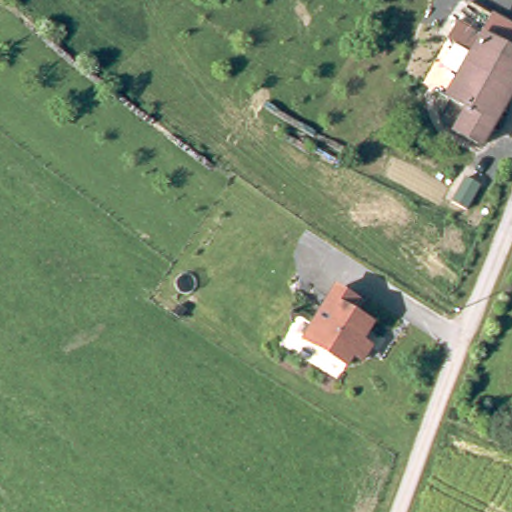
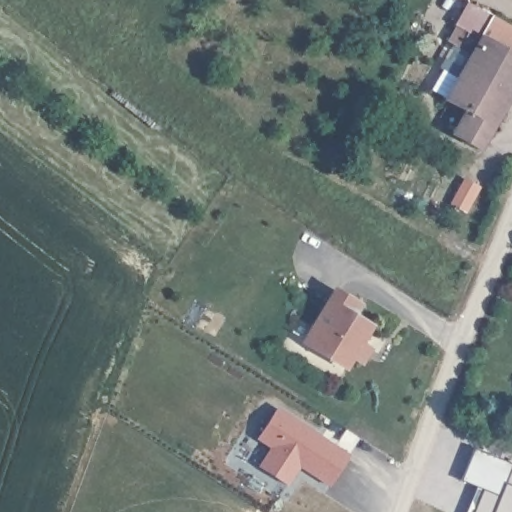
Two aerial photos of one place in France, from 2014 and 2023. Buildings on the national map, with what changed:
unchanged [(452,97),(464,75),(448,64),(462,42),(454,37),(464,20),(489,34),(512,48),(512,103),(488,145),(462,131),(474,109),(452,97)]
unchanged [(349,313),(367,323),(358,339),(366,345),(358,358),(349,353),(343,364),(301,340),(326,297),(332,287),(342,293),(356,301),(349,313)]
new [(289,486),(259,466),(270,447),(257,438),(276,407),(352,455),(332,487),(301,468),(289,486)]

